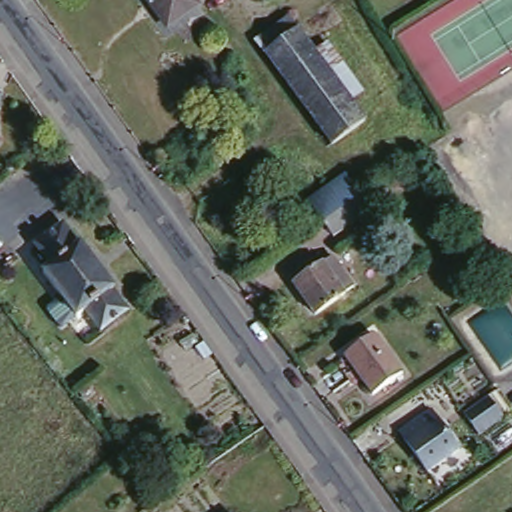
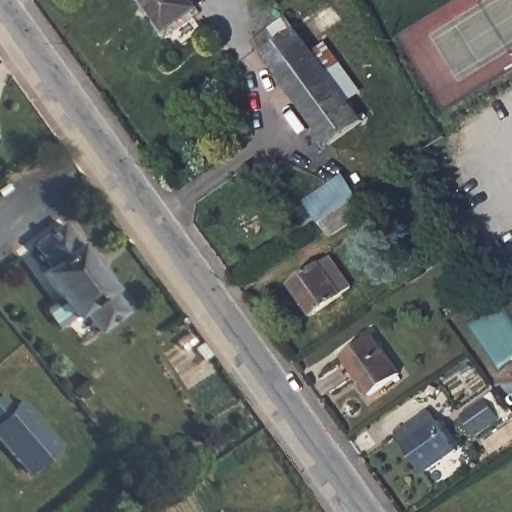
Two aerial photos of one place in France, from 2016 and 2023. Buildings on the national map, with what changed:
unchanged [(166,25),(149,1),(145,5),(142,0),(191,0),(194,4),(166,25)]
unchanged [(360,119),(328,142),(251,40),(286,15),(360,119)]
unchanged [(365,210),(328,235),(318,220),(305,202),(342,176),(355,195),(365,210)]
unchanged [(94,328),(80,310),(72,315),(40,270),(46,264),(30,242),(60,221),(77,245),(79,243),(111,286),(109,288),(124,308),(94,328)]
unchanged [(355,288),(316,315),(295,285),(334,258),(355,288)]
unchanged [(395,374),(366,393),(340,355),(368,335),(395,374)]
new [(6,395),(17,408),(25,401),(64,447),(32,475),(0,438),(0,400),(6,395)]
unchanged [(468,418),(496,396),(511,415),(482,437),(468,418)]
unchanged [(435,420),(440,416),(451,431),(445,435),(456,450),(426,471),(400,435),(430,413),(435,420)]

